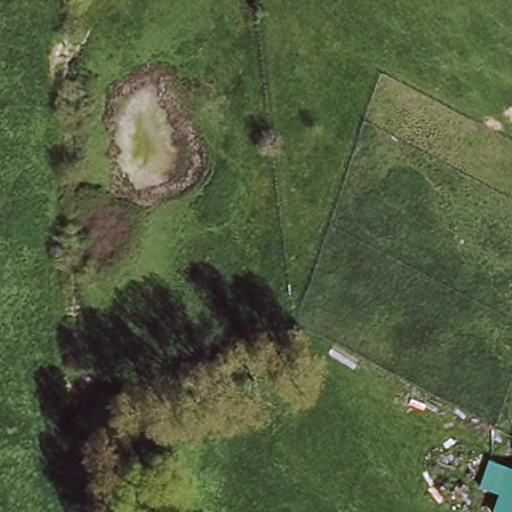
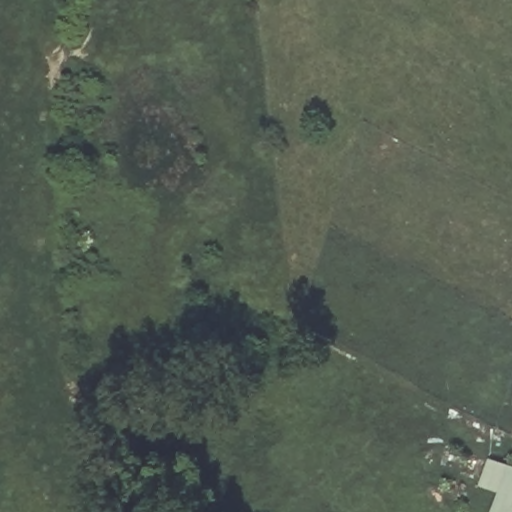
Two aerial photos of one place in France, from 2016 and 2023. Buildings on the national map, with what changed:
unchanged [(512,471),(512,512),(490,512),(503,468),(512,471)]

